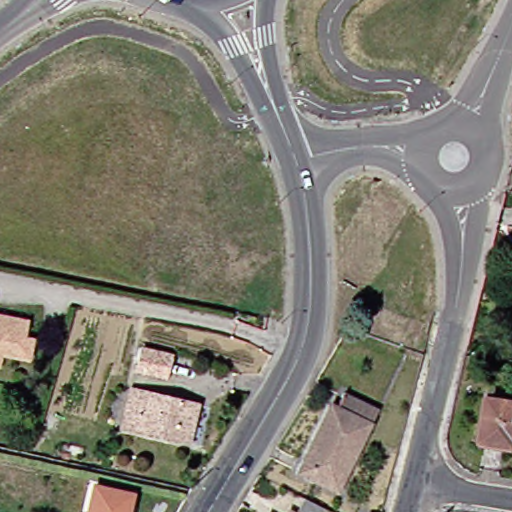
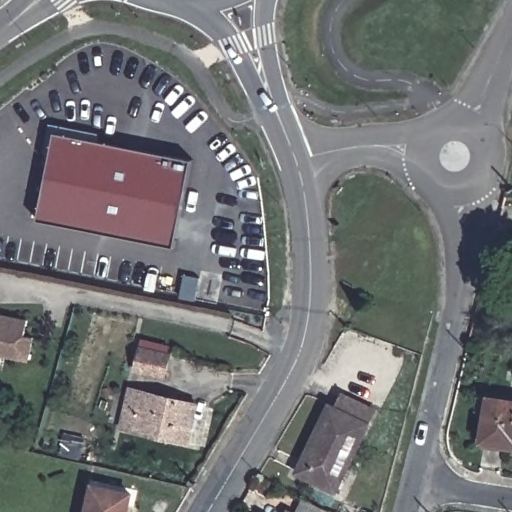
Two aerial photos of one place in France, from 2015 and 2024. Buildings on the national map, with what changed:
new [(56,131),(193,159),(175,248),(39,220),(56,131)]
unchanged [(402,345),(367,332),(374,315),(408,327),(402,345)]
unchanged [(8,359),(5,371),(0,370),(0,317),(33,324),(30,340),(39,342),(34,365),(8,359)]
unchanged [(170,380),(144,373),(148,353),(175,359),(170,380)]
unchanged [(192,445),(129,429),(137,394),(201,409),(192,445)]
unchanged [(512,399),(512,446),(483,441),(491,396),(512,399)]
unchanged [(344,493),(305,475),(337,410),(342,412),(349,397),(383,412),(344,493)]
unchanged [(133,512),(95,512),(100,491),(136,499),(133,512)]
unchanged [(326,512),(301,512),(307,502),(326,512)]
unchanged [(369,511),(373,512),(369,512),(369,511)]

